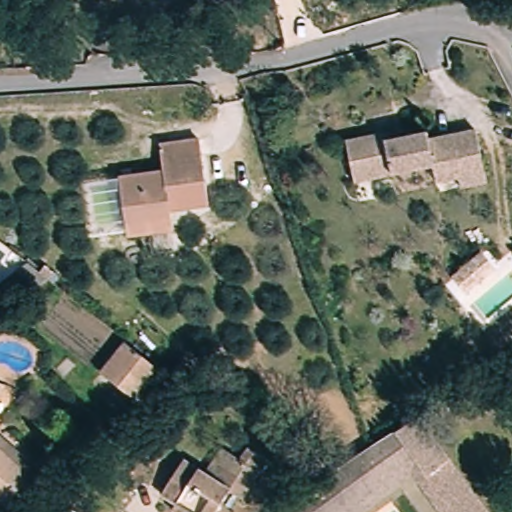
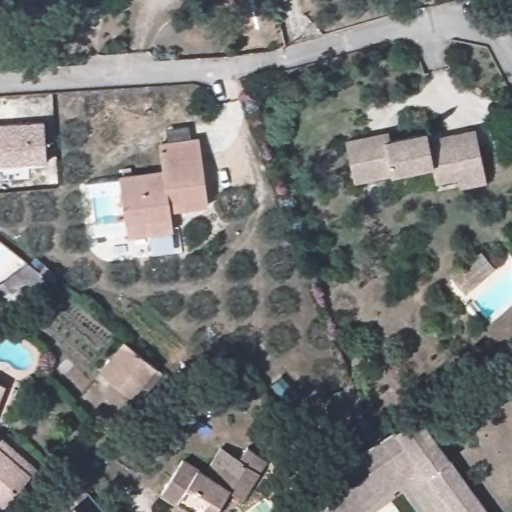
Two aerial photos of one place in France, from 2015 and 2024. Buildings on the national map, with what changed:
new [(45,123),(46,163),(0,164),(0,124),(45,123)]
unchanged [(462,188),(458,173),(430,181),(425,165),(355,188),(341,143),(372,134),(377,149),(429,131),(434,146),(475,134),(481,154),(489,180),(462,188)]
unchanged [(127,238),(126,225),(123,173),(167,171),(166,149),(204,146),(207,210),(173,211),(174,222),(174,236),(127,238)]
new [(482,255),(494,268),(465,294),(452,280),(482,255)]
unchanged [(22,263),(40,280),(9,306),(0,298),(0,280),(22,263)]
unchanged [(128,394),(104,364),(132,342),(161,370),(128,394)]
unchanged [(0,404),(0,382),(6,384),(0,404)]
unchanged [(413,468),(356,512),(291,512),(342,473),(360,460),(412,422),(442,461),(460,484),(482,512),(446,512),(420,478),(413,468)]
unchanged [(30,480),(3,509),(0,506),(0,451),(30,480)]
unchanged [(209,480),(221,463),(237,474),(244,463),(260,474),(242,500),(232,493),(218,512),(171,512),(175,506),(161,496),(183,462),(209,480)]
unchanged [(412,485),(376,512),(356,512),(413,468),(420,478),(446,512),(433,512),(412,485)]
new [(74,507),(78,512),(67,512),(74,507)]

